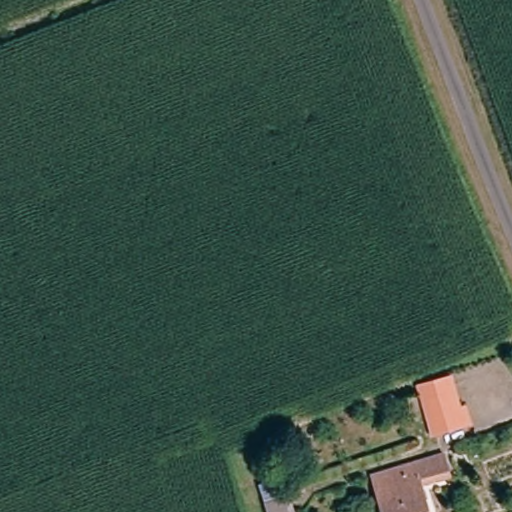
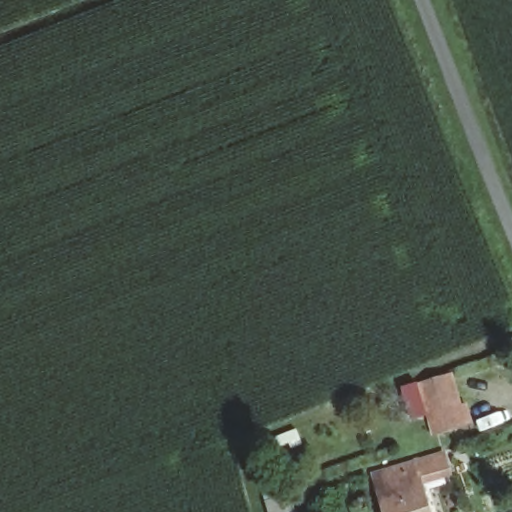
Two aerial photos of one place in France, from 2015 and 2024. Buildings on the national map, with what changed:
unchanged [(427,393),(449,386),(454,402),(463,398),(466,413),(436,425),(427,393)]
unchanged [(437,447),(441,465),(418,473),(431,512),(390,512),(376,470),(437,447)]

